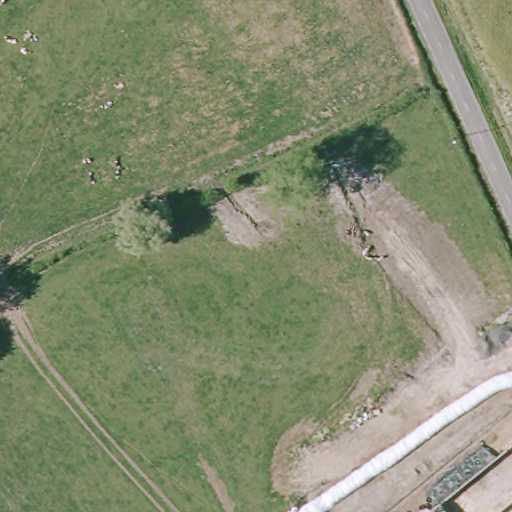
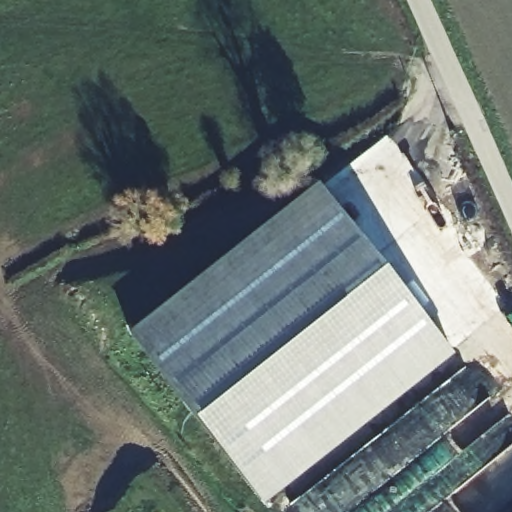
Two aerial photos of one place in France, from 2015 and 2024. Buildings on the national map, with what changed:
new [(130,332),(320,182),(455,355),(264,504),(130,332)]

